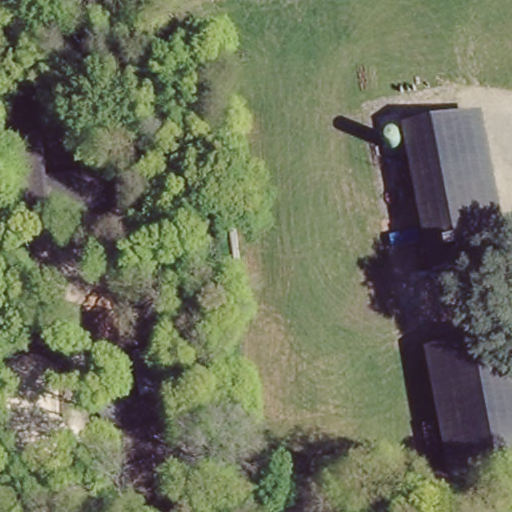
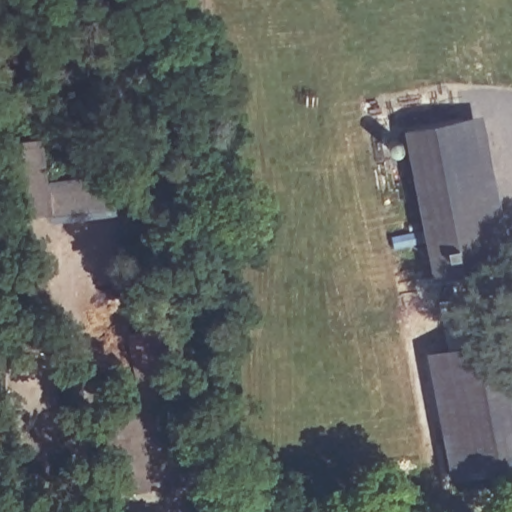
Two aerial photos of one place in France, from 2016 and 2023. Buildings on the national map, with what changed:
unchanged [(508,261),(431,275),(402,123),(480,111),(508,261)]
unchanged [(205,480),(153,486),(133,352),(155,348),(152,318),(140,319),(131,265),(165,258),(205,480)]
unchanged [(512,471),(502,473),(453,485),(453,484),(425,344),(446,340),(512,328),(512,471)]

